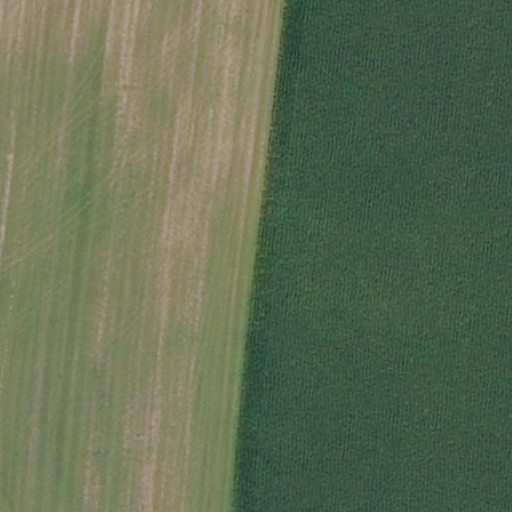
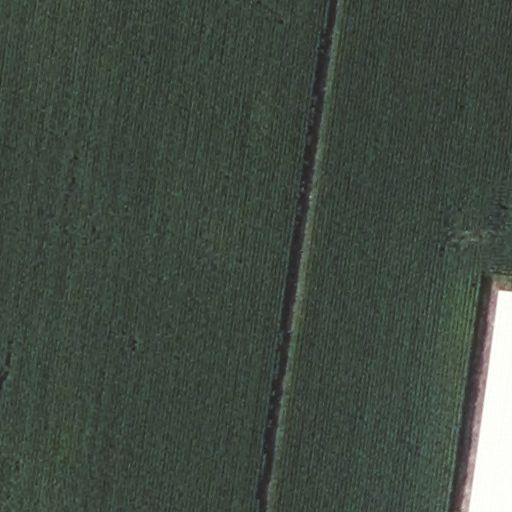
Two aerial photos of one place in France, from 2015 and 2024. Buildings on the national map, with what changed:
new [(503,294),(512,295),(512,512),(473,512),(476,488),(503,294)]

